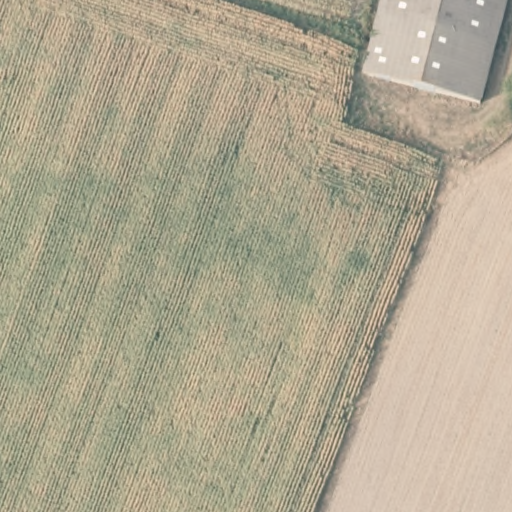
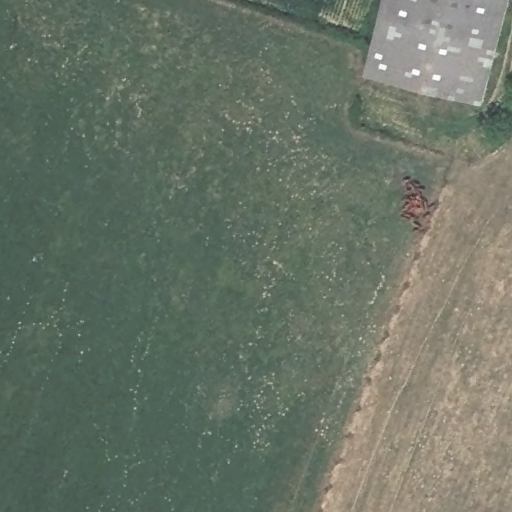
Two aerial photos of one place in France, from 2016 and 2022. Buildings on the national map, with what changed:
unchanged [(365,67),(368,55),(381,0),(464,0),(431,89),(365,67)]
unchanged [(464,0),(510,0),(475,104),(431,89),(464,0)]

